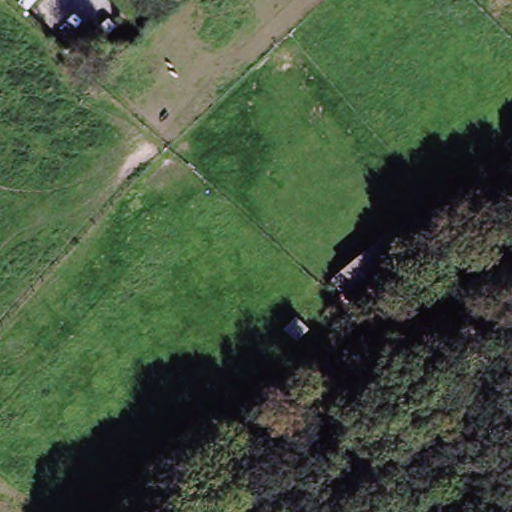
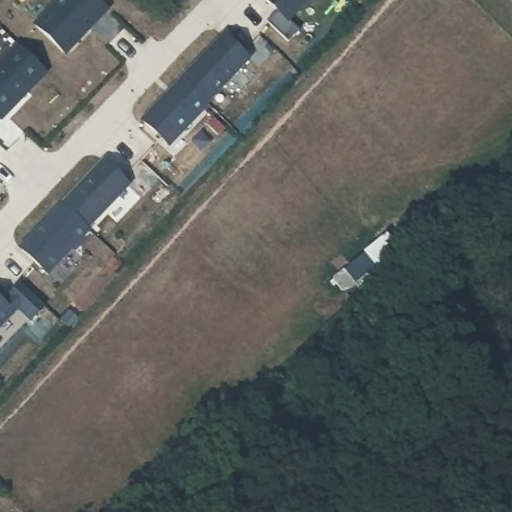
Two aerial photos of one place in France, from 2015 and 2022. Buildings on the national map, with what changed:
new [(96,0),(107,11),(66,54),(38,26),(62,0),(96,0)]
new [(314,0),(290,26),(264,0),(314,0)]
new [(200,90),(187,78),(230,33),(255,57),(220,94),(212,101),(200,90)]
new [(23,41),(52,69),(0,124),(0,65),(23,41)]
new [(175,144),(148,118),(187,78),(214,103),(175,144)]
new [(67,203),(72,196),(108,159),(134,184),(98,221),(92,227),(67,203)]
new [(52,272),(25,246),(67,203),(94,229),(52,272)]
unchanged [(382,240),(392,258),(334,296),(326,282),(382,240)]
new [(0,330),(0,296),(7,302),(25,283),(49,306),(36,319),(22,307),(0,330)]

